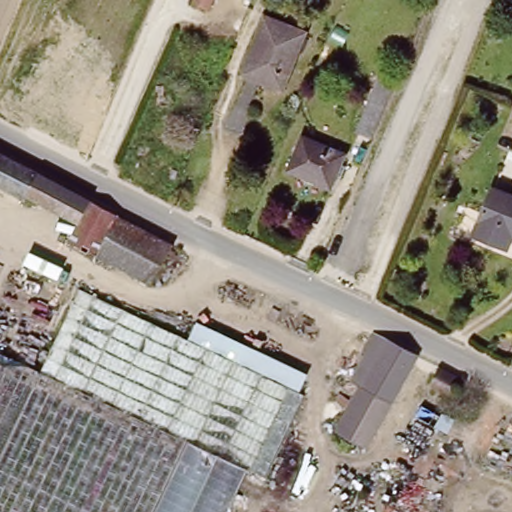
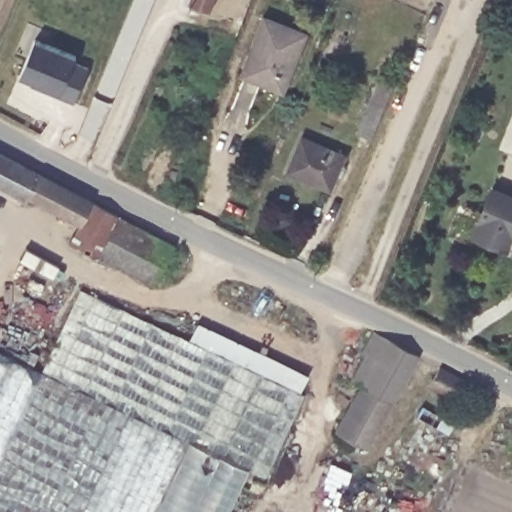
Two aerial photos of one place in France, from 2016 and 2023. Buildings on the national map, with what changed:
unchanged [(203,0),(217,0),(215,5),(203,0)]
unchanged [(303,34),(283,89),(244,74),(264,20),(303,34)]
new [(73,102),(31,85),(31,80),(21,75),(36,38),(77,55),(74,61),(89,68),(73,102)]
unchanged [(373,140),(357,134),(380,80),(395,86),(373,140)]
unchanged [(330,193),(288,176),(301,144),(344,163),(330,193)]
unchanged [(39,169),(27,193),(25,196),(0,183),(0,150),(39,169)]
unchanged [(150,281),(66,237),(77,218),(27,193),(39,169),(94,197),(172,239),(150,281)]
unchanged [(498,182),(512,187),(512,239),(479,226),(498,182)]
unchanged [(41,374),(81,295),(188,341),(219,356),(298,393),(240,512),(0,512),(0,354),(41,374)]
unchanged [(306,375),(298,393),(219,356),(187,341),(196,324),(229,339),(306,375)]
unchanged [(396,403),(392,402),(384,418),(386,421),(370,448),(341,432),(365,386),(357,382),(370,357),(366,353),(375,333),(390,339),(423,355),(396,403)]
unchanged [(462,381),(452,399),(427,386),(437,369),(462,381)]

